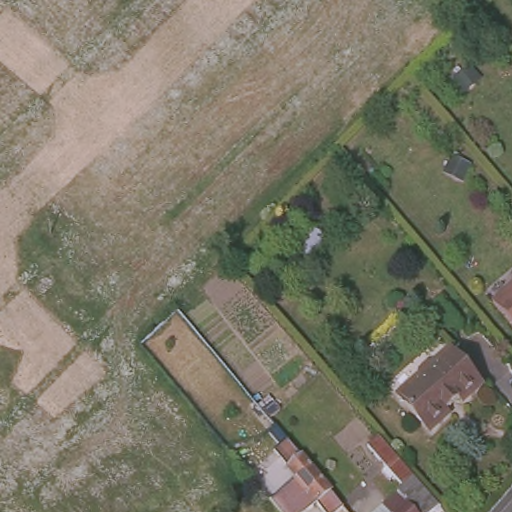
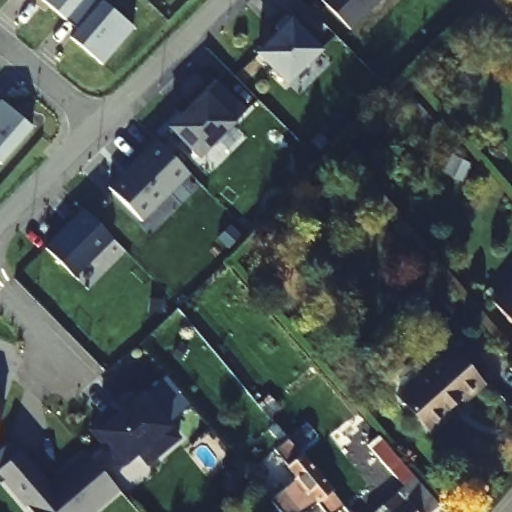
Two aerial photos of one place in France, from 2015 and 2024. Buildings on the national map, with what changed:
new [(102,65),(72,39),(78,31),(37,0),(102,0),(133,26),(102,65)]
new [(323,0),(380,0),(351,27),(323,0)]
new [(278,35),(275,31),(287,20),(320,52),(287,87),(257,56),(278,35)]
new [(246,115),(200,162),(170,132),(216,85),(246,115)]
new [(1,102),(33,130),(0,164),(0,103),(1,102)]
new [(109,192),(160,143),(190,177),(140,224),(109,192)]
new [(111,240),(74,278),(45,250),(84,212),(111,240)]
unchanged [(512,285),(512,317),(496,298),(512,285)]
unchanged [(482,379),(463,397),(457,392),(443,404),(447,408),(428,427),(396,392),(453,345),(482,379)]
new [(149,465),(139,453),(122,467),(94,431),(142,392),(171,426),(181,437),(149,465)]
demolished [(258,407),(241,423),(234,413),(250,398),(258,407)]
new [(4,403),(0,414),(0,402),(4,403)]
unchanged [(342,502),(331,512),(323,512),(312,500),(298,512),(271,512),(261,501),(289,475),(265,448),(284,432),(342,502)]
unchanged [(438,510),(435,512),(373,512),(393,495),(375,472),(381,466),(365,448),(375,437),(438,510)]
new [(49,487),(86,456),(117,492),(93,512),(30,512),(0,478),(0,470),(20,453),(49,487)]

